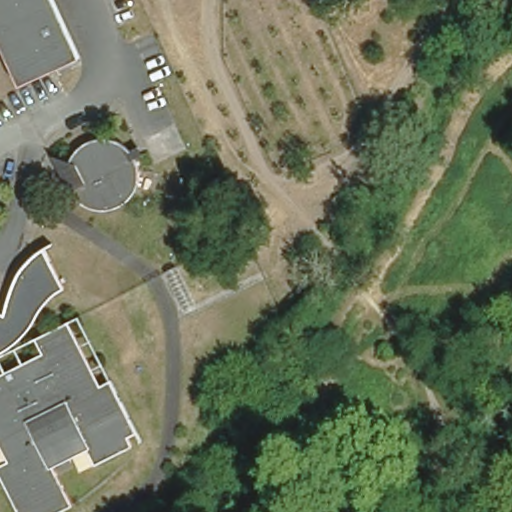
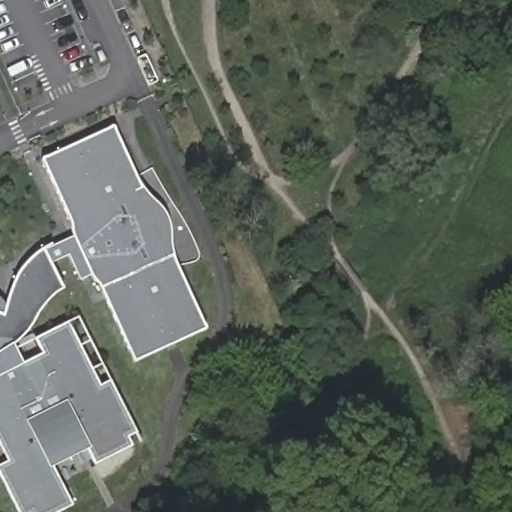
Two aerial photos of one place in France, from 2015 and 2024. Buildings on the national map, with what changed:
demolished [(15,81),(0,48),(0,0),(51,0),(76,54),(15,81)]
demolished [(75,145),(76,144),(76,143),(76,142),(77,142),(77,141),(77,140),(78,140),(79,139),(79,138),(80,138),(80,137),(81,136),(82,136),(82,135),(83,134),(84,134),(84,133),(85,133),(85,132),(86,132),(86,131),(87,131),(87,130),(88,130),(89,129),(90,129),(91,129),(91,128),(92,128),(92,127),(93,127),(94,127),(95,126),(96,126),(97,126),(98,125),(99,125),(100,125),(101,125),(102,124),(103,124),(104,124),(105,124),(106,124),(107,124),(108,124),(109,124),(110,124),(111,124),(112,124),(113,124),(114,124),(115,124),(116,125),(117,125),(118,125),(119,125),(120,126),(121,126),(121,127),(122,127),(124,127),(124,128),(125,128),(127,129),(127,130),(129,130),(129,131),(130,131),(131,131),(131,132),(131,133),(132,133),(132,134),(133,134),(134,134),(134,135),(135,135),(136,136),(132,137),(130,139),(131,140),(132,143),(134,147),(141,144),(142,145),(142,146),(142,148),(143,149),(144,150),(144,153),(144,154),(145,155),(145,156),(145,158),(145,161),(145,163),(145,164),(144,165),(144,167),(144,168),(144,169),(143,170),(143,171),(142,173),(142,174),(142,175),(141,176),(140,179),(139,180),(138,181),(137,182),(137,183),(136,184),(135,185),(133,187),(132,187),(132,188),(131,189),(130,190),(129,191),(127,191),(126,192),(125,193),(124,193),(122,194),(121,195),(119,195),(118,196),(117,196),(116,196),(114,196),(113,197),(112,197),(111,197),(109,197),(107,197),(105,197),(104,197),(102,197),(100,196),(99,196),(97,196),(97,195),(95,195),(94,194),(93,194),(92,193),(91,193),(90,192),(88,192),(87,191),(86,190),(85,189),(84,189),(83,188),(82,187),(81,186),(81,185),(79,183),(78,182),(77,181),(77,180),(76,179),(75,178),(76,178),(79,176),(82,174),(87,172),(90,170),(92,169),(91,167),(87,160),(86,156),(84,153),(82,150),(82,149),(77,148),(74,147),(75,145)]
new [(194,305),(203,325),(202,327),(133,358),(131,355),(100,286),(97,282),(90,274),(78,279),(67,255),(51,263),(64,288),(55,294),(46,302),(39,312),(32,324),(24,336),(12,346),(0,354),(0,314),(4,315),(11,286),(15,277),(20,270),(26,262),(32,255),(43,247),(44,249),(72,236),(71,224),(70,221),(41,161),(42,159),(47,156),(111,127),(112,128),(137,180),(147,196),(158,206),(163,213),(166,220),(167,228),(168,238),(169,246),(172,258),(177,268),(179,266),(197,303),(194,305)]
unchanged [(35,334),(69,317),(101,381),(111,376),(136,430),(129,434),(133,442),(95,461),(87,445),(54,462),(74,501),(53,512),(31,512),(30,512),(21,512),(0,470),(0,461),(7,457),(0,442),(0,369),(42,348),(35,334)]

